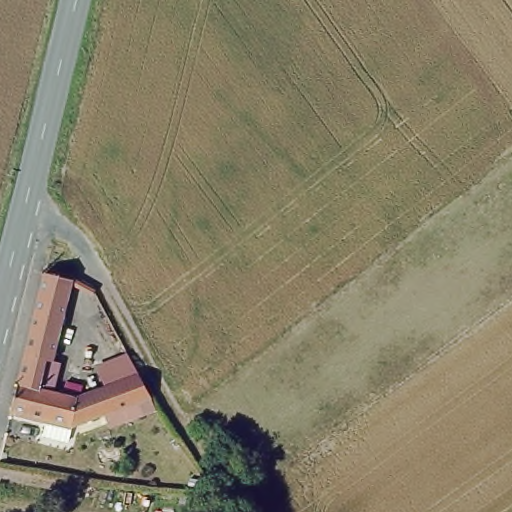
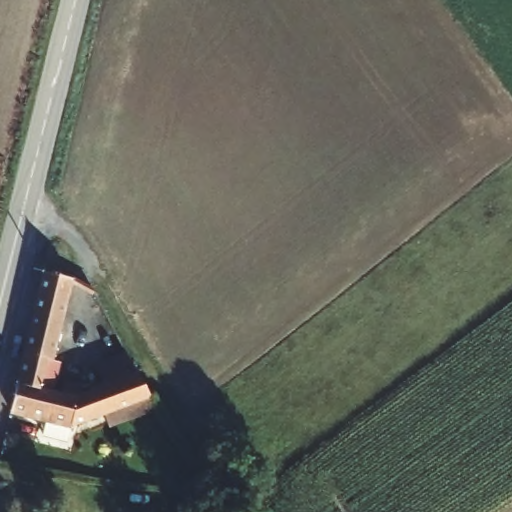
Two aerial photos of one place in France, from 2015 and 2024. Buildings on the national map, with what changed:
unchanged [(52,359),(45,356),(38,377),(34,390),(16,385),(56,244),(68,245),(64,258),(78,262),(52,359)]
unchanged [(42,436),(45,421),(9,412),(16,385),(34,390),(38,377),(78,391),(120,375),(93,322),(111,312),(152,395),(72,427),(68,442),(42,436)]

